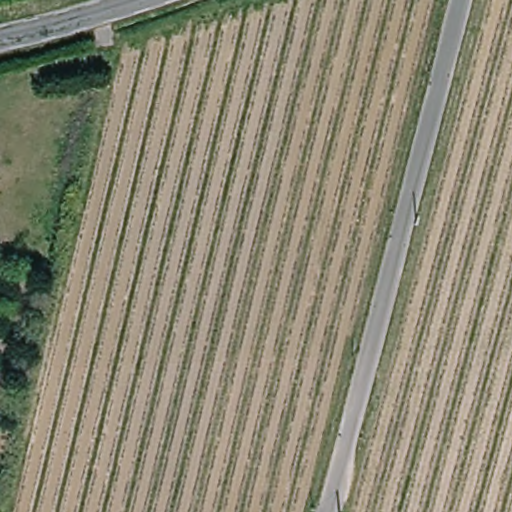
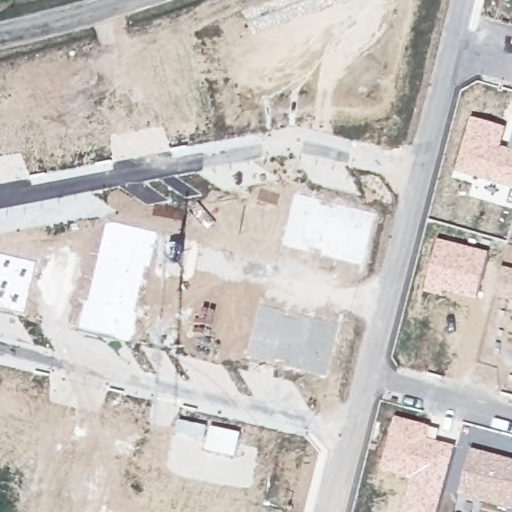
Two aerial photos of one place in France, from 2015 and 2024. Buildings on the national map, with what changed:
new [(470,117),(507,127),(500,146),(510,148),(512,139),(512,189),(455,172),(470,117)]
new [(296,193),(323,200),(322,205),(333,207),(334,204),(378,213),(362,265),(321,256),(322,251),(310,248),(308,253),(282,246),(296,193)]
new [(86,300),(88,301),(108,223),(157,235),(149,267),(146,266),(127,340),(79,328),(86,300)]
new [(477,298),(445,291),(444,297),(425,293),(437,240),(489,253),(477,298)]
new [(23,312),(0,307),(0,254),(36,261),(23,312)]
new [(510,302),(495,299),(502,267),(512,270),(512,311),(509,310),(510,302)]
new [(286,312),(285,315),(297,318),(298,315),(339,325),(325,376),(285,365),(286,361),(277,359),(275,364),(245,356),(261,305),(286,312)]
new [(400,512),(410,478),(382,469),(395,417),(430,427),(427,439),(456,446),(438,512),(400,512)]
new [(470,448),(512,460),(512,509),(459,496),(470,448)]

